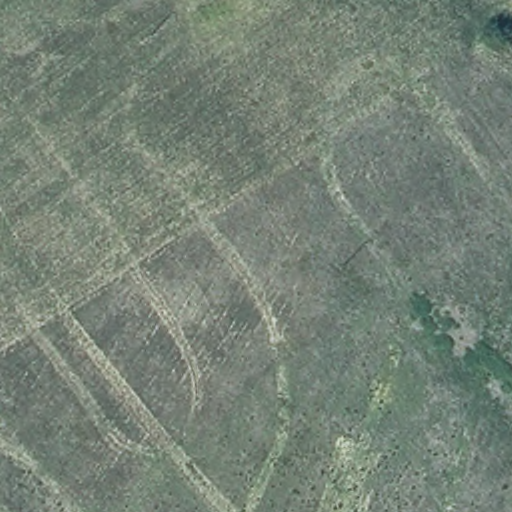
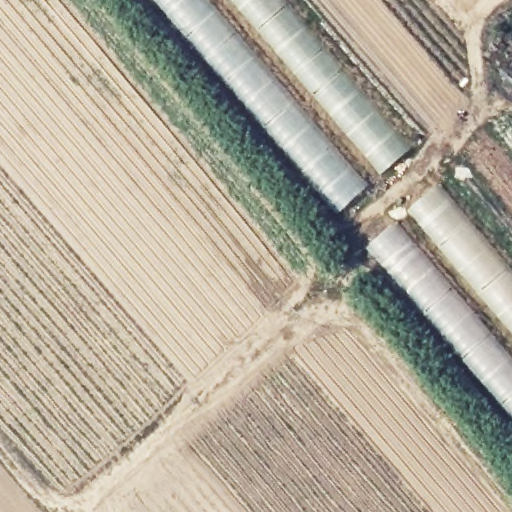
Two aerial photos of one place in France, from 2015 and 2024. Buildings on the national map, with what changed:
new [(151,0),(287,0),(414,147),(334,212),(151,0)]
new [(392,221),(512,361),(512,426),(361,248),(392,221)]

